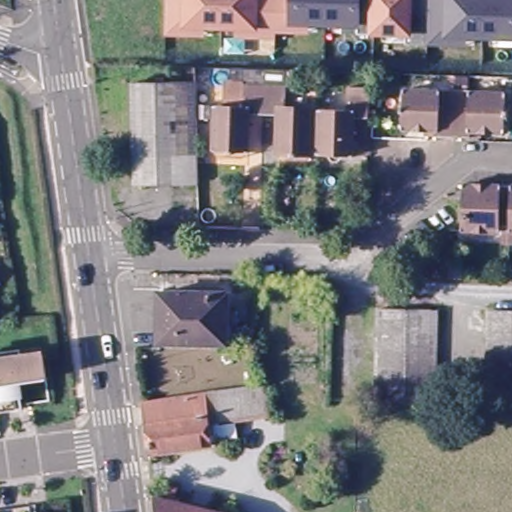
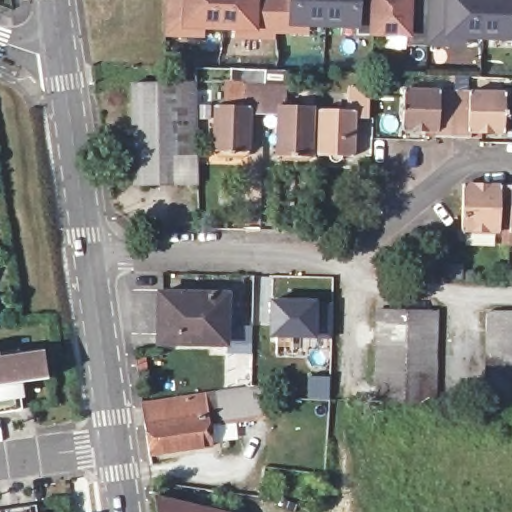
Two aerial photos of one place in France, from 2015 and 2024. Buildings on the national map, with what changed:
unchanged [(166,0),(512,0),(512,40),(466,39),(466,48),(426,46),(405,45),(406,37),(369,36),(357,35),(357,29),(307,27),(308,34),(275,33),(275,40),(235,39),(235,30),(205,29),(204,38),(165,37),(166,0)]
unchanged [(270,118),(256,117),(254,156),(217,155),(220,109),(227,109),(229,70),(264,71),(264,86),(271,87),(270,118)]
unchanged [(272,72),(297,72),(297,88),(291,87),(290,110),(317,112),(316,157),(282,156),(283,118),(270,118),(271,87),(272,72)]
unchanged [(468,141),(452,140),(453,93),(453,77),(467,78),(467,93),(506,95),(503,134),(478,134),(478,141),(468,141)]
unchanged [(137,186),(133,86),(197,83),(200,185),(137,186)]
unchanged [(360,119),(359,159),(322,158),(322,138),(323,111),(352,112),(353,90),(373,91),(372,120),(360,119)]
unchanged [(428,132),(403,131),(405,92),(453,93),(452,140),(438,139),(428,139),(428,132)]
unchanged [(503,235),(466,235),(466,233),(467,202),(467,188),(478,188),(512,189),(512,213),(505,213),(503,235)]
unchanged [(493,269),(507,270),(507,283),(493,282),(493,269)]
unchanged [(226,318),(222,318),(222,344),(162,343),(164,294),(227,295),(226,318)]
new [(269,302),(312,303),(313,306),(329,306),(329,338),(269,337),(269,302)]
unchanged [(433,400),(375,399),(377,309),(436,311),(433,400)]
unchanged [(487,312),(512,312),(512,402),(485,401),(487,312)]
unchanged [(15,355),(16,363),(39,359),(42,384),(8,389),(12,415),(0,417),(0,357),(15,355)]
new [(307,377),(327,377),(328,378),(328,400),(307,400),(307,397),(307,377)]
unchanged [(273,415),(223,421),(220,394),(270,388),(273,415)]
unchanged [(216,446),(152,453),(145,404),(209,396),(216,446)]
unchanged [(159,493),(175,497),(172,507),(193,512),(154,512),(153,503),(156,503),(159,493)]

